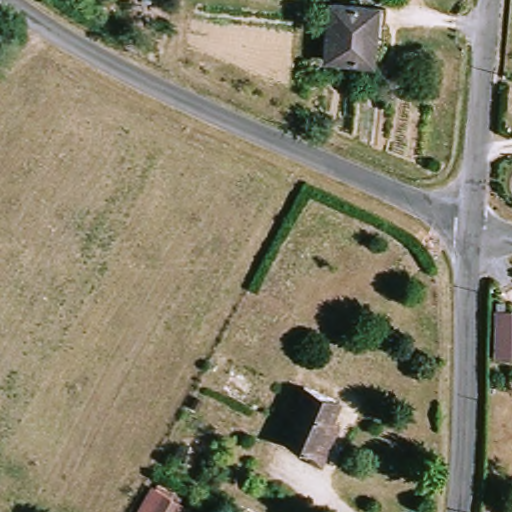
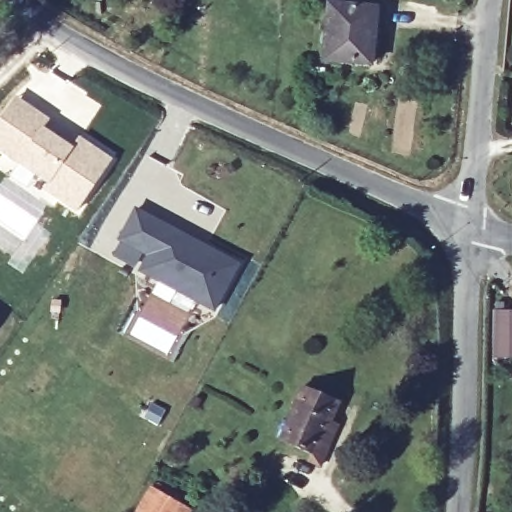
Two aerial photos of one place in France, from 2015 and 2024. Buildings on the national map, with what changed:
unchanged [(329,57),(340,0),(382,8),(372,64),(329,57)]
new [(0,125),(20,96),(33,105),(59,123),(53,131),(63,138),(66,135),(79,143),(84,136),(116,159),(81,208),(50,185),(43,195),(13,175),(24,158),(5,144),(0,142),(0,125)]
new [(146,271),(154,256),(125,240),(141,210),(244,266),(219,311),(202,302),(197,310),(159,289),(163,281),(146,271)]
unchanged [(329,464),(316,457),(318,451),(285,436),(309,385),(343,400),(335,417),(349,424),(329,464)]
unchanged [(197,512),(142,512),(158,485),(200,508),(197,512)]

